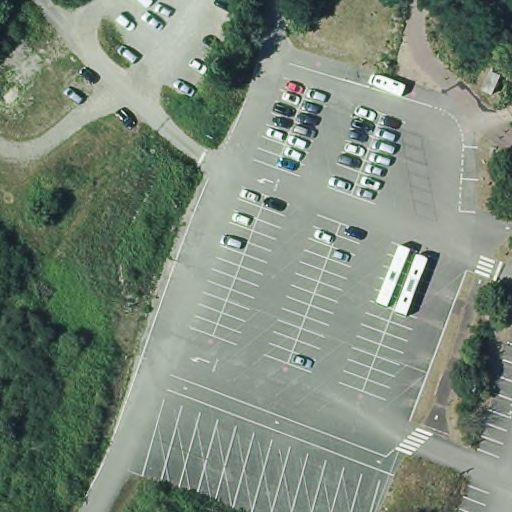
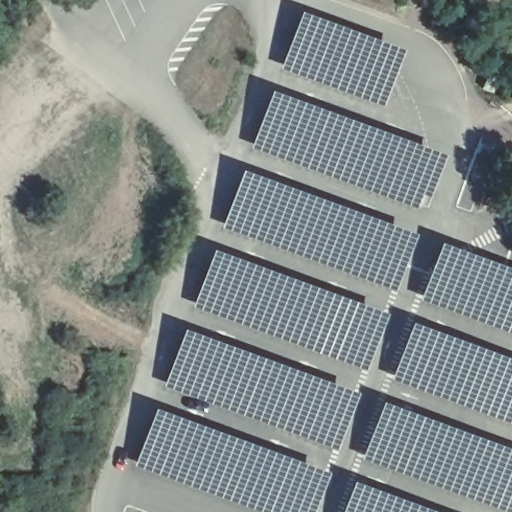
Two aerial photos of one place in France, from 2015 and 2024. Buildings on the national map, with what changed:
new [(279,67),(303,13),(404,55),(380,110),(279,67)]
unchanged [(487,71),(498,76),(492,91),(481,87),(487,71)]
new [(354,184),(351,190),(273,154),(271,159),(251,149),(271,95),(399,139),(446,160),(421,215),(354,184)]
new [(339,269),(337,272),(221,229),(242,175),(377,222),(417,240),(392,293),(339,269)]
new [(441,246),(512,272),(512,335),(420,301),(441,246)]
new [(289,340),(287,345),(231,321),(230,324),(191,306),(218,249),(294,283),(296,277),(388,317),(363,373),(289,340)]
new [(391,380),(413,323),(512,362),(512,425),(391,380)]
new [(164,383),(188,328),(356,400),(334,455),(164,383)]
new [(497,508),(496,510),(361,460),(383,403),(512,453),(512,512),(506,512),(497,508)]
new [(135,461),(158,407),(328,480),(314,512),(251,512),(135,461)]
new [(354,483),(431,512),(343,512),(354,483)]

